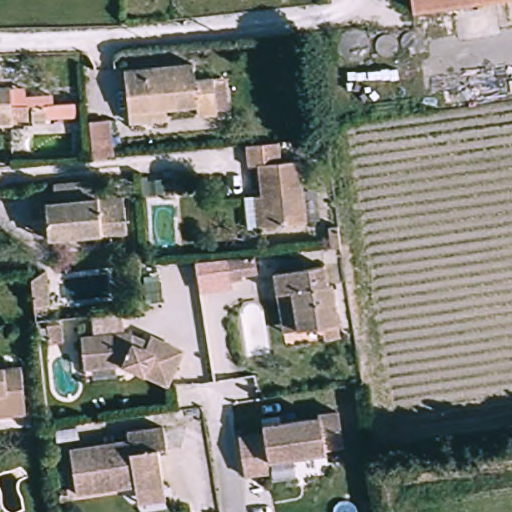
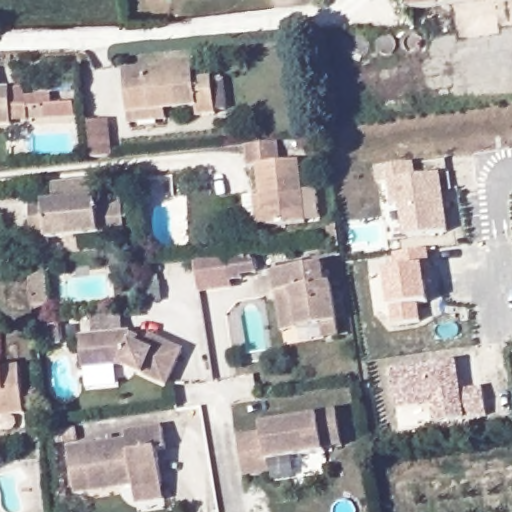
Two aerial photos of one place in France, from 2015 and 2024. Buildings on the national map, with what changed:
unchanged [(411,0),(484,0),(412,11),(411,0)]
unchanged [(129,124),(128,113),(124,71),(193,64),(194,80),(212,78),(216,114),(197,116),(196,106),(165,109),(166,120),(129,124)]
unchanged [(10,107),(26,107),(28,122),(11,122),(11,125),(0,126),(0,89),(10,88),(10,107)]
unchanged [(108,121),(111,157),(91,160),(88,122),(108,121)]
unchanged [(256,227),(253,197),(260,196),(258,166),(247,167),(245,145),(278,142),(280,162),(299,160),(306,222),(256,227)]
new [(404,236),(400,202),(392,203),(388,182),(379,183),(376,166),(414,161),(416,178),(442,175),(449,232),(404,236)]
unchanged [(54,198),(52,178),(95,174),(98,206),(114,204),(116,227),(100,227),(101,230),(47,235),(47,229),(33,231),(29,200),(54,198)]
unchanged [(338,226),(341,247),(331,249),(329,227),(338,226)]
new [(398,271),(394,254),(428,249),(431,266),(426,267),(429,304),(419,306),(421,319),(393,323),(391,307),(387,272),(398,271)]
new [(233,289),(200,295),(194,265),(235,258),(246,257),(248,257),(253,257),(263,256),(264,271),(250,273),(251,277),(238,278),(231,280),(233,289)]
unchanged [(334,337),(333,325),(289,333),(274,336),(268,297),(264,277),(334,265),(336,284),(341,283),(348,322),(350,335),(334,337)]
unchanged [(45,271),(48,305),(45,305),(46,315),(34,316),(30,281),(45,271)]
unchanged [(179,352),(163,387),(119,366),(80,369),(77,337),(128,333),(128,337),(144,343),(148,337),(179,352)]
new [(487,417),(468,421),(434,426),(432,406),(398,411),(393,370),(458,361),(463,390),(483,387),(487,417)]
unchanged [(24,414),(0,417),(0,369),(20,367),(24,414)]
unchanged [(264,433),(263,427),(319,418),(318,415),(338,412),(343,446),(324,448),(325,452),(269,461),(270,472),(243,476),(238,437),(264,433)]
unchanged [(134,502),(133,491),(132,485),(123,487),(73,494),(66,450),(124,441),(124,432),(161,427),(164,448),(155,450),(161,487),(163,498),(134,502)]

